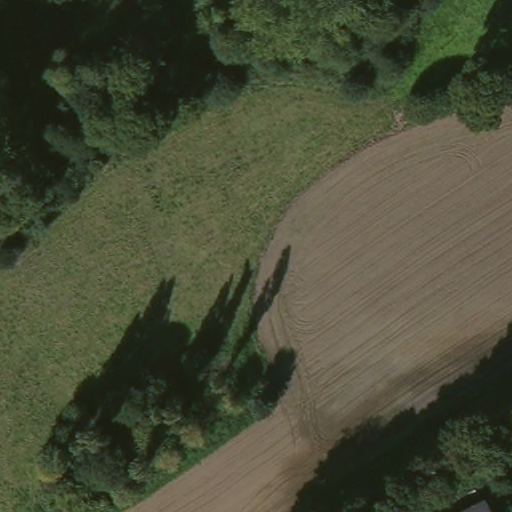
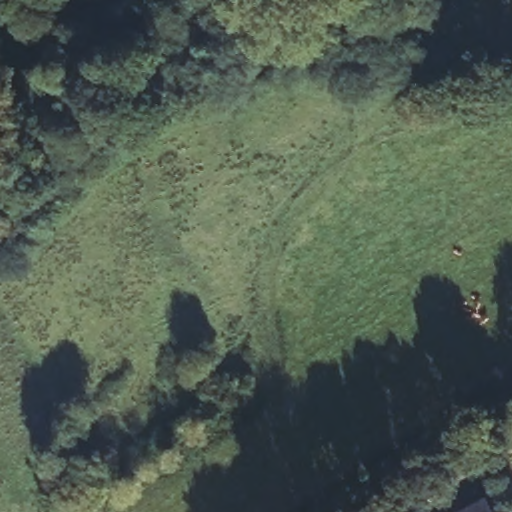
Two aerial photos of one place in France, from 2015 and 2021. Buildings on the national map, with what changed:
unchanged [(482,512),(472,512),(480,508),(482,512)]

